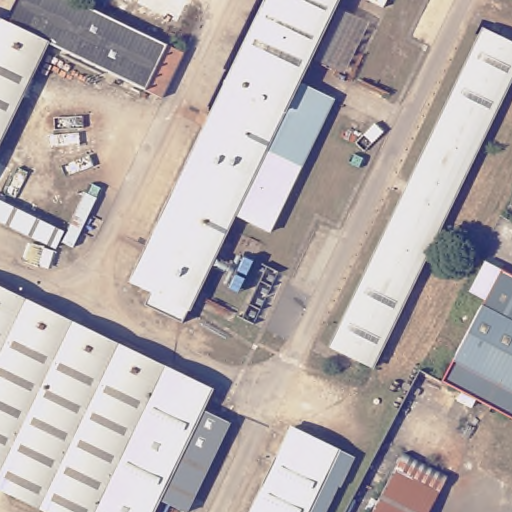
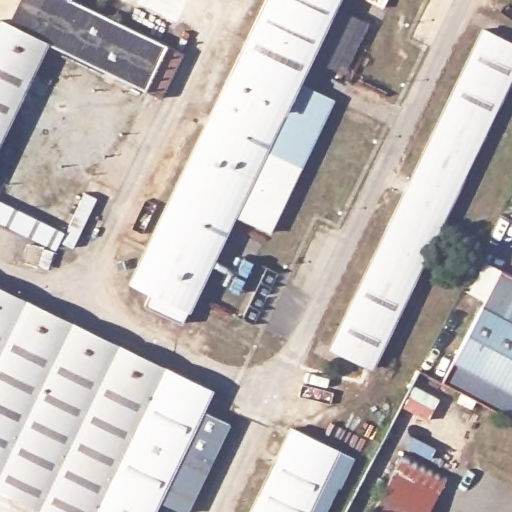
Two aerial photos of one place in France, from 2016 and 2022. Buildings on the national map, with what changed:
unchanged [(19,0),(81,0),(170,43),(148,87),(51,41),(0,146),(0,24),(4,16),(9,20),(19,0)]
unchanged [(269,0),(343,0),(303,82),(340,100),(309,162),(272,144),(185,320),(150,302),(156,290),(136,278),(269,0)]
unchanged [(482,30),(512,46),(512,82),(374,370),(329,349),(482,30)]
unchanged [(63,236),(85,191),(100,199),(79,243),(63,236)]
unchanged [(62,224),(54,243),(0,216),(0,195),(62,224)]
unchanged [(505,272),(512,276),(512,314),(488,303),(505,272)]
unchanged [(216,388),(203,414),(233,428),(192,511),(163,497),(155,512),(55,512),(0,486),(0,284),(216,388)]
unchanged [(512,314),(512,384),(460,356),(486,308),(488,303),(512,314)]
unchanged [(512,417),(446,382),(460,356),(512,384),(512,417)]
unchanged [(340,455),(312,512),(252,512),(291,431),(340,455)]
unchanged [(392,469),(404,444),(450,467),(435,492),(392,469)]
unchanged [(432,498),(424,512),(369,512),(389,474),(432,498)]

